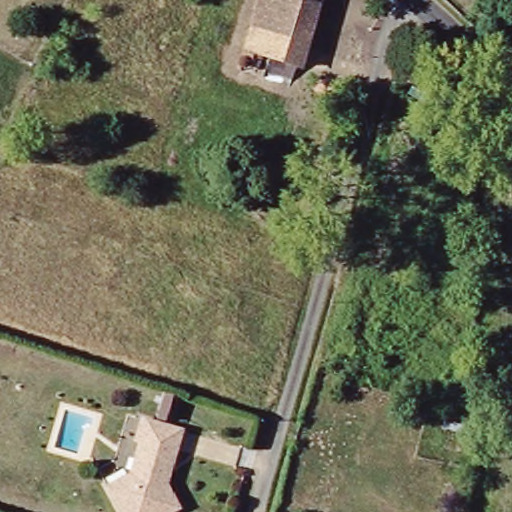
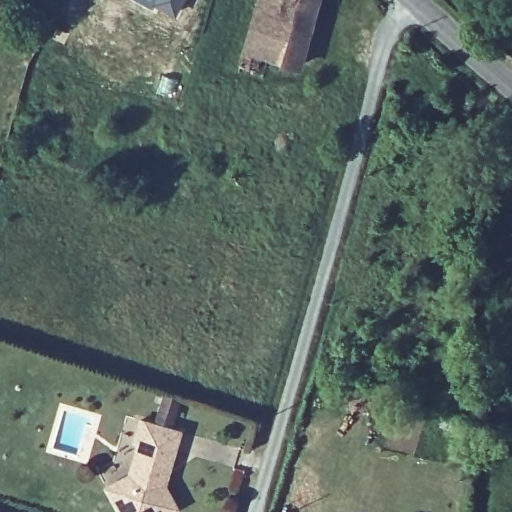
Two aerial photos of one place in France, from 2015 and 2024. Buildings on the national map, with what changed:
new [(175,17),(138,0),(184,0),(175,17)]
unchanged [(303,47),(248,28),(257,0),(319,0),(303,47)]
unchanged [(303,47),(296,68),(255,58),(250,70),(235,65),(248,28),(303,47)]
unchanged [(169,512),(121,512),(108,484),(132,473),(144,437),(139,435),(145,417),(185,431),(172,466),(166,482),(177,507),(169,512)]

